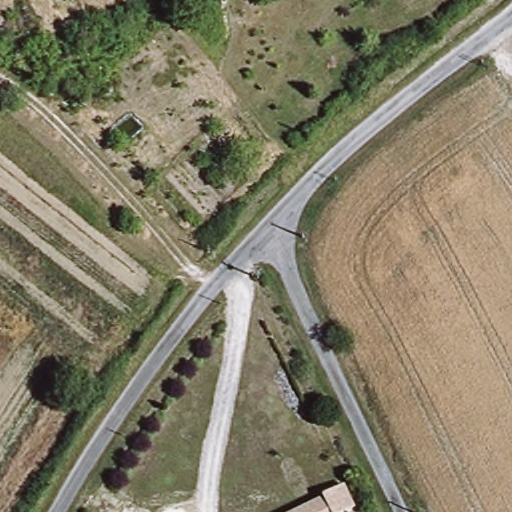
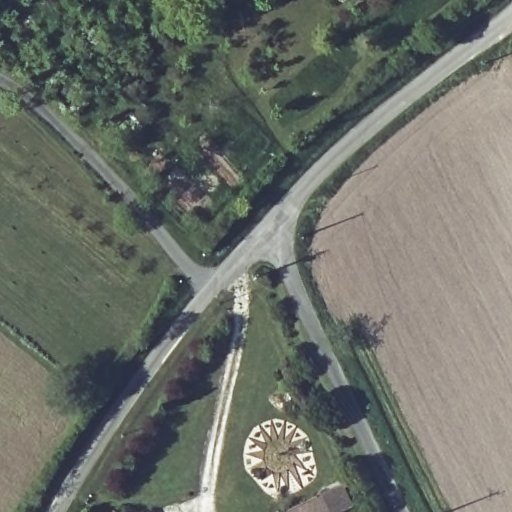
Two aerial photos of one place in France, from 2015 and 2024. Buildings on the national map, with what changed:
unchanged [(326,492),(344,484),(355,507),(344,512),(294,512),(328,496),(326,492)]

